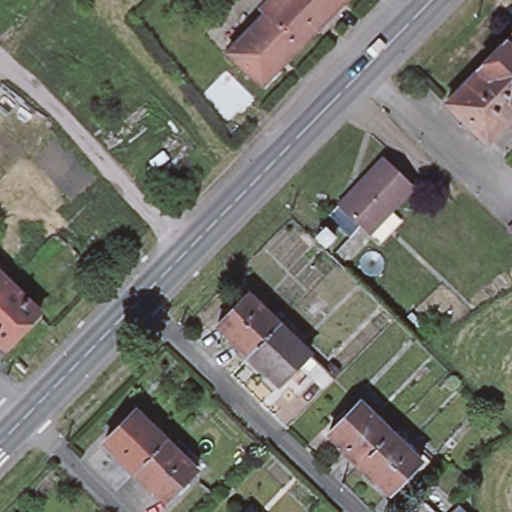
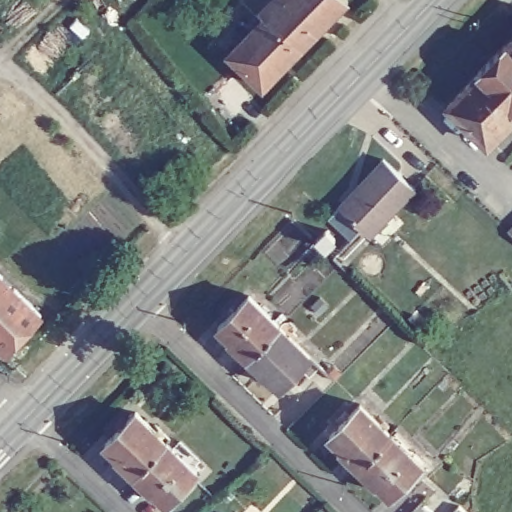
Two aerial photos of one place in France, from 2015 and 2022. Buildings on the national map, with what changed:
unchanged [(296,17),(277,37),(260,20),(256,16),(272,0),(345,0),(346,1),(314,34),(296,17)]
unchanged [(261,89),(226,55),(260,20),(277,37),(296,17),(314,34),(261,89)]
unchanged [(512,117),(484,147),(442,108),(512,35),(512,117)]
unchanged [(376,159),(405,188),(362,234),(333,206),(376,159)]
unchanged [(512,232),(512,237),(510,235),(512,232)]
unchanged [(35,314),(0,350),(0,280),(35,314)]
unchanged [(224,341),(226,338),(214,326),(242,295),(274,325),(241,357),(224,341)]
unchanged [(302,376),(292,366),(275,385),(262,372),(259,376),(241,357),(274,325),(304,352),(303,353),(313,363),(302,376)]
unchanged [(346,469),(330,453),(332,451),(320,438),(350,407),(380,437),(346,469)]
unchanged [(128,478),(110,462),(112,460),(100,447),(130,417),(160,446),(128,478)]
unchanged [(405,486),(397,478),(380,497),(368,485),(365,487),(346,469),(380,437),(383,441),(391,432),(417,457),(425,465),(405,486)]
unchanged [(190,473),(160,506),(147,493),(145,496),(128,478),(160,446),(190,473)]
unchanged [(431,509),(434,512),(409,512),(420,500),(431,509)]
unchanged [(467,512),(449,512),(458,503),(467,512)]

